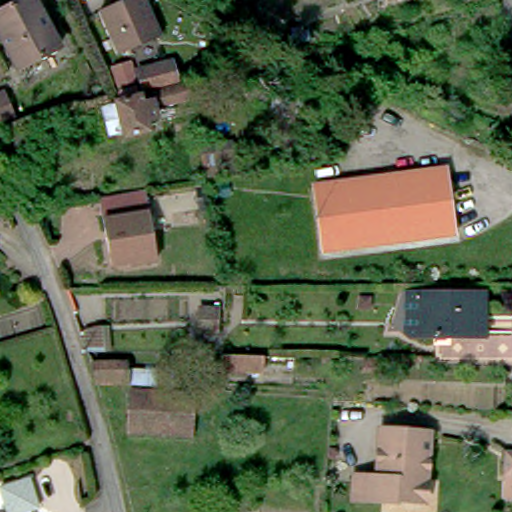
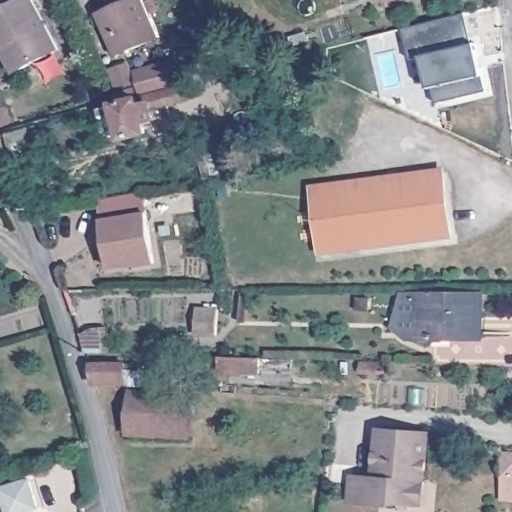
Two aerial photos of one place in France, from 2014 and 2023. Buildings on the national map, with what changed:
unchanged [(16,71),(0,40),(0,14),(24,0),(33,0),(57,49),(16,71)]
unchanged [(146,0),(161,35),(116,56),(98,16),(131,0),(146,0)]
unchanged [(225,0),(232,4),(227,14),(210,4),(212,0),(225,0)]
unchanged [(232,0),(242,0),(240,4),(232,0)]
new [(488,91),(436,104),(433,88),(430,89),(422,56),(410,59),(403,29),(466,13),(466,14),(473,44),(459,47),(476,43),(480,56),(482,67),(488,91)]
unchanged [(253,16),(283,35),(277,44),(248,25),(253,16)]
unchanged [(286,36),(297,41),(295,48),(283,43),(286,36)]
unchanged [(134,72),(167,63),(172,83),(140,93),(134,72)]
unchanged [(142,130),(142,131),(120,138),(118,135),(105,139),(96,108),(182,83),(186,98),(167,104),(170,113),(154,119),(155,120),(150,121),(151,127),(142,130)]
unchanged [(16,122),(3,128),(0,121),(0,95),(3,94),(16,122)]
unchanged [(34,128),(40,148),(15,154),(8,134),(34,128)]
unchanged [(231,153),(235,169),(208,174),(205,156),(231,153)]
unchanged [(391,174),(443,166),(448,198),(450,216),(452,230),(324,249),(321,226),(315,185),(391,174)]
unchanged [(146,212),(150,238),(155,261),(128,265),(128,262),(110,265),(106,242),(100,197),(143,190),(146,212)]
unchanged [(406,300),(406,296),(423,296),(423,292),(487,291),(487,332),(422,332),(422,329),(406,328),(396,324),(406,300)]
unchanged [(197,331),(198,307),(219,307),(227,308),(227,323),(218,323),(217,332),(197,331)]
unchanged [(93,327),(93,324),(109,324),(108,350),(85,349),(79,328),(93,327)]
unchanged [(294,374),(218,372),(219,358),(293,360),(294,374)]
unchanged [(125,383),(105,383),(95,382),(95,360),(125,362),(125,383)]
unchanged [(386,385),(361,383),(362,362),(386,362),(386,385)]
unchanged [(127,392),(193,396),(191,438),(124,433),(127,392)]
unchanged [(410,499),(395,498),(395,500),(350,498),(351,473),(374,474),(375,462),(377,426),(427,429),(426,444),(425,455),(424,479),(423,500),(410,499)]
unchanged [(501,499),(503,452),(512,452),(512,499),(501,499)]
unchanged [(0,492),(0,488),(21,482),(27,480),(37,508),(31,510),(25,512),(7,512),(0,492)]

